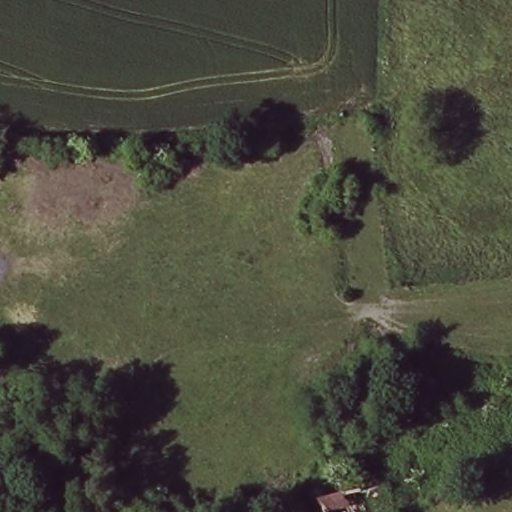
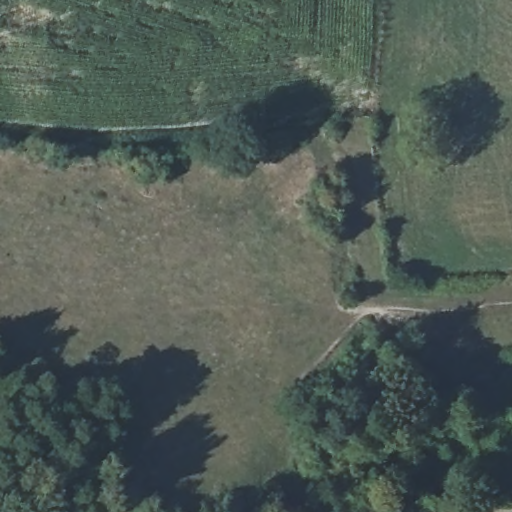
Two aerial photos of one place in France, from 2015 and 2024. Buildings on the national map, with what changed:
unchanged [(390,476),(395,512),(319,512),(314,492),(390,476)]

